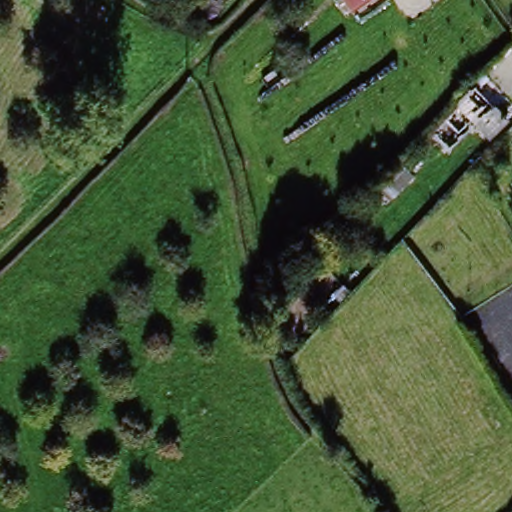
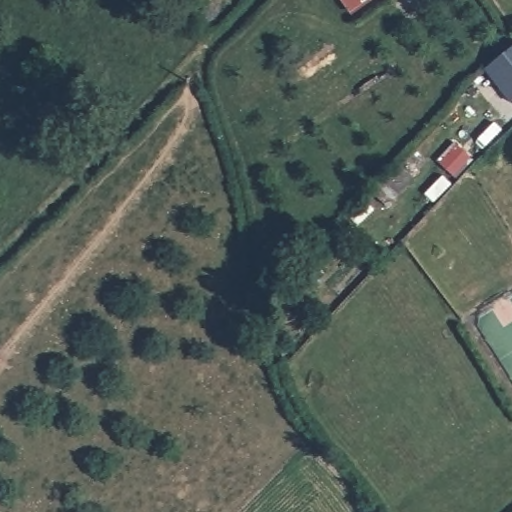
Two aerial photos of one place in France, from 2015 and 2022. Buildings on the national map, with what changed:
unchanged [(342,0),(372,0),(353,14),(342,0)]
new [(512,44),(512,102),(483,72),(484,70),(512,44)]

